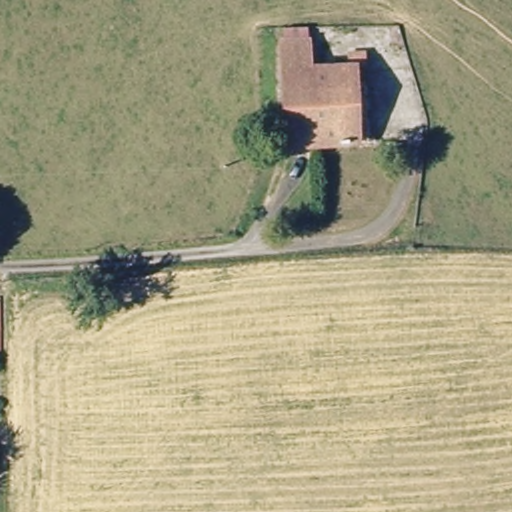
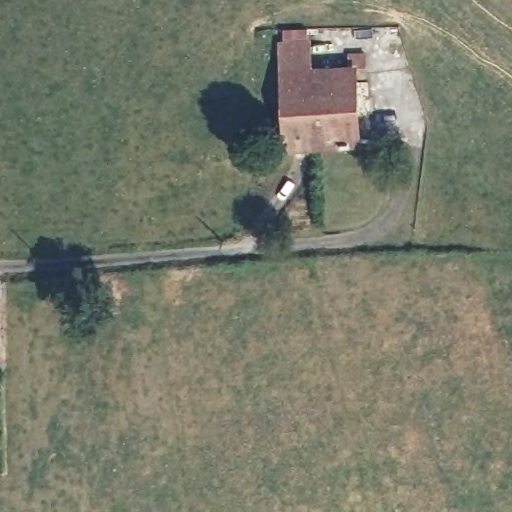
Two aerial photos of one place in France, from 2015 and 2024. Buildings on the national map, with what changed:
unchanged [(308,41),(311,67),(348,67),(355,147),(282,145),(280,41),(308,41)]
unchanged [(348,67),(347,50),(362,50),(362,66),(348,67)]
unchanged [(2,298),(1,363),(0,363),(0,297),(2,298)]

